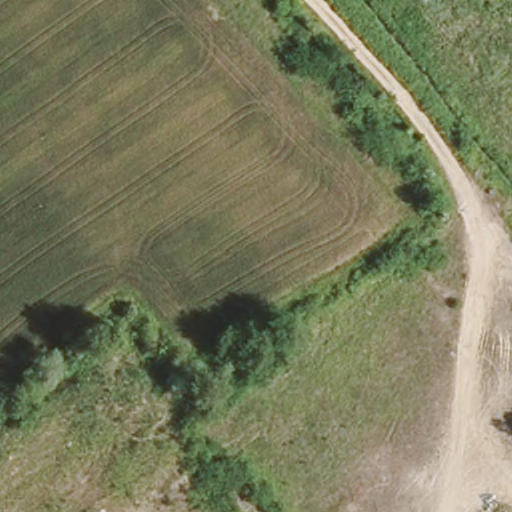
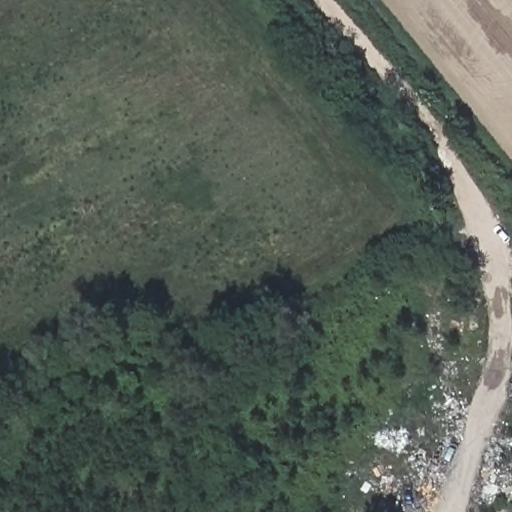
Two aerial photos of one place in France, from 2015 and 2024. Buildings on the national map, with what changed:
[]

